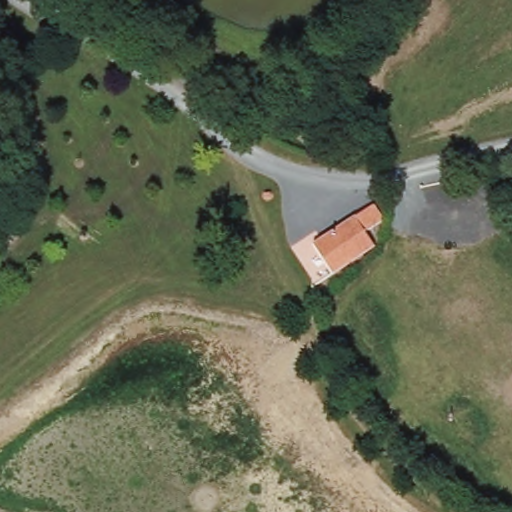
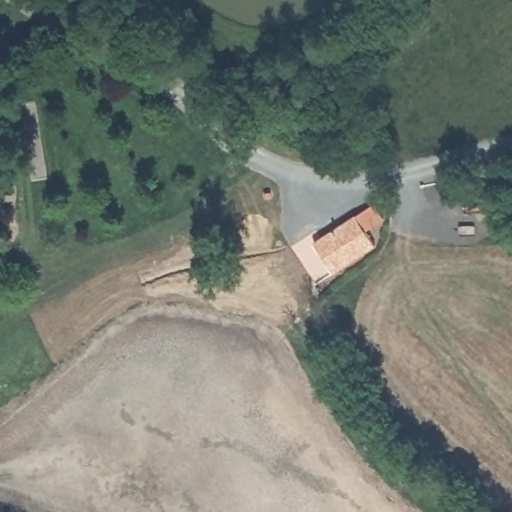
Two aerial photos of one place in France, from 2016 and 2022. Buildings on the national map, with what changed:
unchanged [(335,228),(354,218),(373,207),(380,220),(377,222),(361,231),(371,250),(327,273),(310,242),(335,228)]

